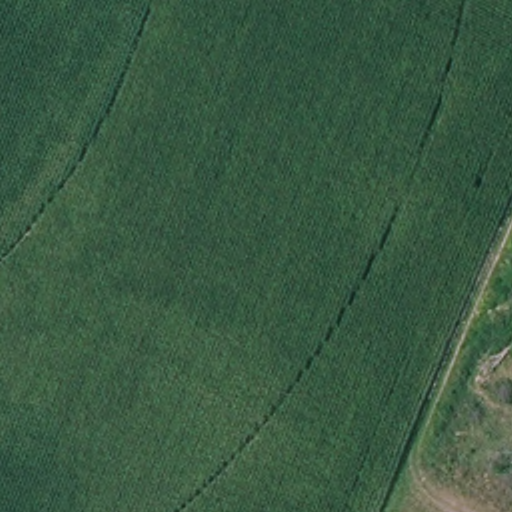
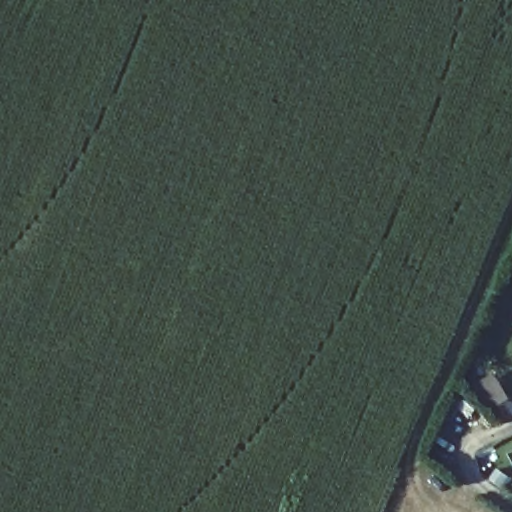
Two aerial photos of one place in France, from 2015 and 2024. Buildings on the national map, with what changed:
[]

